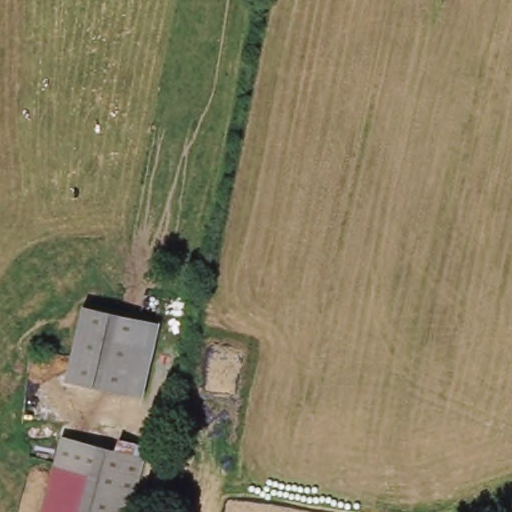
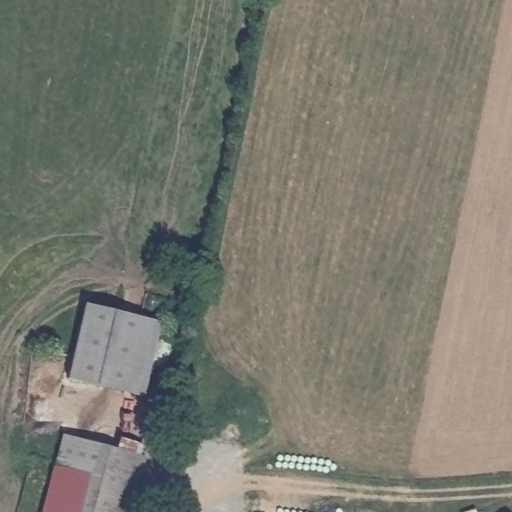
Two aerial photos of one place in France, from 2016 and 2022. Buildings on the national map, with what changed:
unchanged [(117,396),(66,383),(88,308),(138,322),(117,396)]
unchanged [(117,396),(138,322),(156,328),(135,401),(117,396)]
unchanged [(45,463),(55,431),(135,460),(124,489),(127,491),(119,512),(37,512),(52,464),(45,463)]

